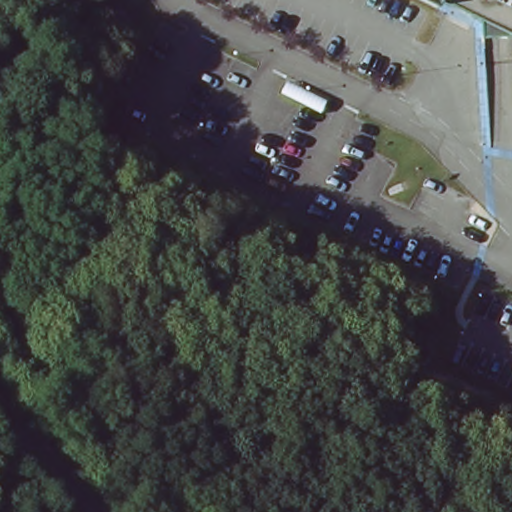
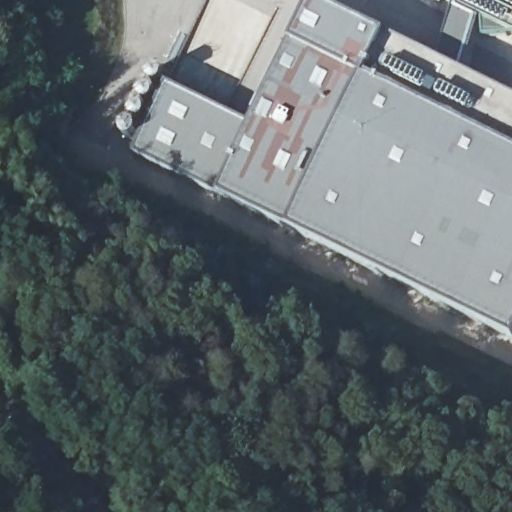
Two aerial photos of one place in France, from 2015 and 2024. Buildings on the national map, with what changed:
new [(222,191),(137,151),(168,87),(252,126),(292,45),(314,0),(385,35),(436,60),(455,4),(477,14),(462,71),(512,96),(512,332),(291,227),(222,191)]
unchanged [(512,31),(448,0),(512,0),(512,31)]

